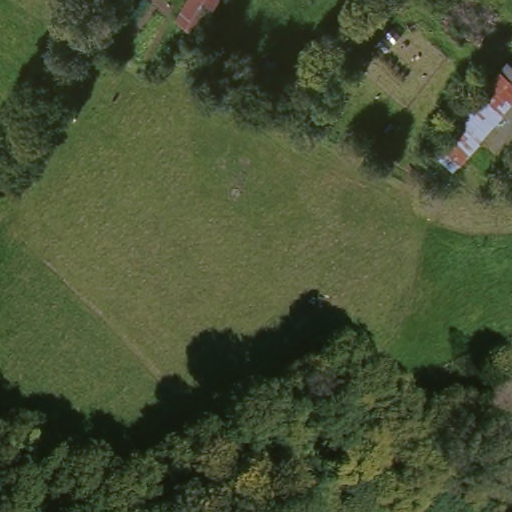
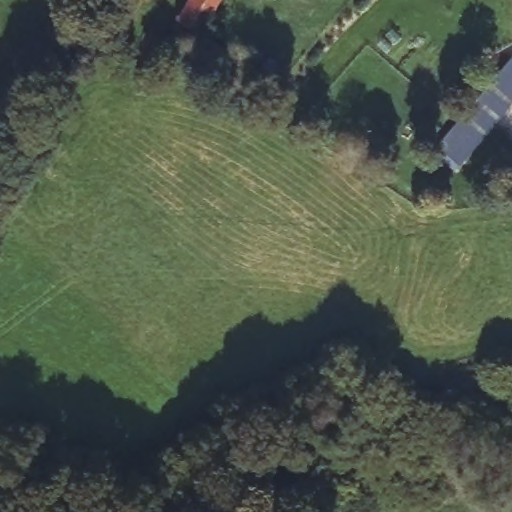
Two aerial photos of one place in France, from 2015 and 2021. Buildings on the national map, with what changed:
unchanged [(193,30),(173,16),(184,0),(215,0),(193,30)]
unchanged [(512,74),(512,87),(510,89),(512,90),(512,105),(452,177),(428,158),(501,65),(512,74)]

